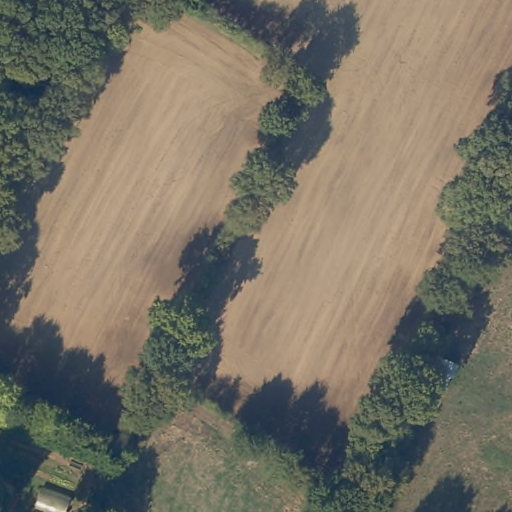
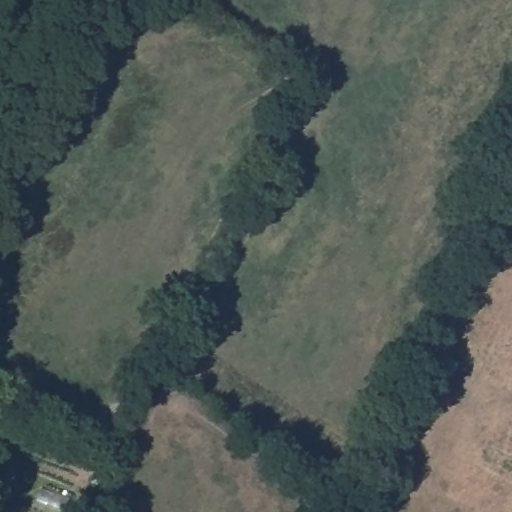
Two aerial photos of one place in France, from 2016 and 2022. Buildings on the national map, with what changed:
unchanged [(461,365),(444,396),(418,389),(433,353),(461,365)]

